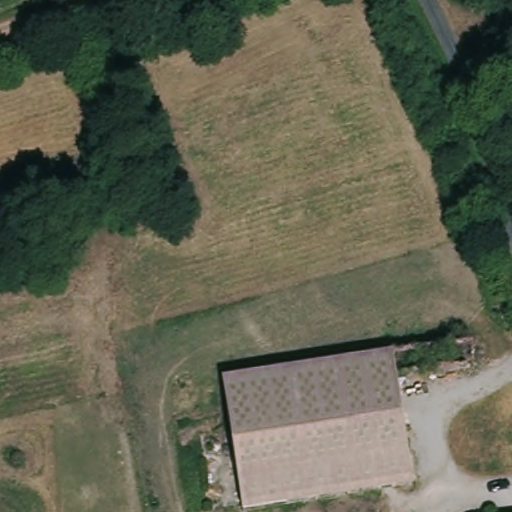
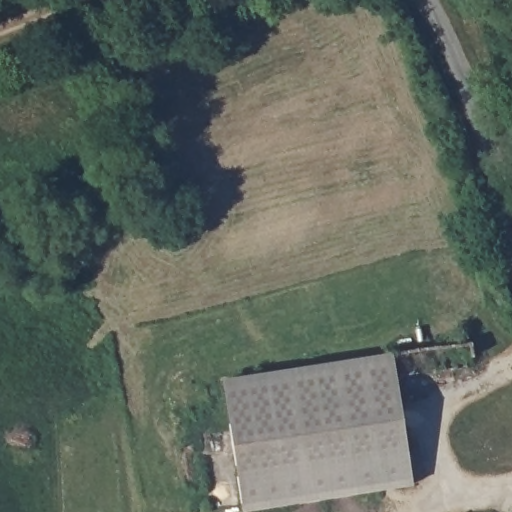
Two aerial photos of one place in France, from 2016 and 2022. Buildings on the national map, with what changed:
unchanged [(394,349),(412,483),(243,508),(224,376),(394,349)]

